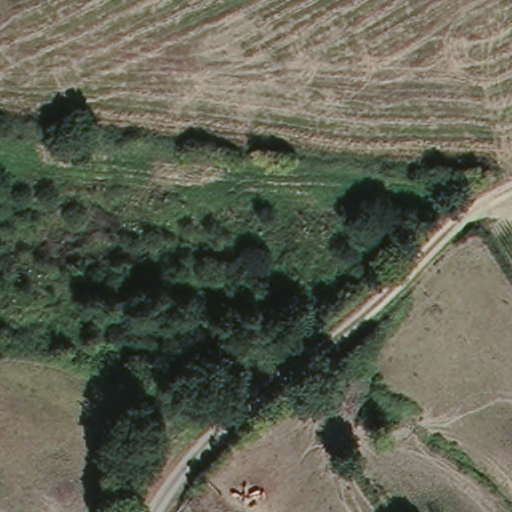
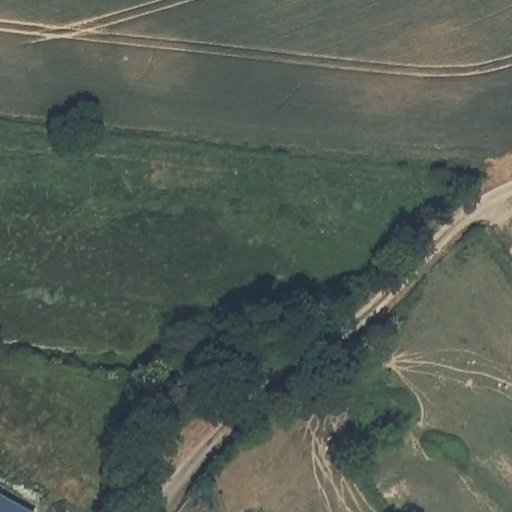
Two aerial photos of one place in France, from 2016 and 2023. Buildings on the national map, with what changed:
new [(26,512),(0,512),(0,497),(26,512)]

